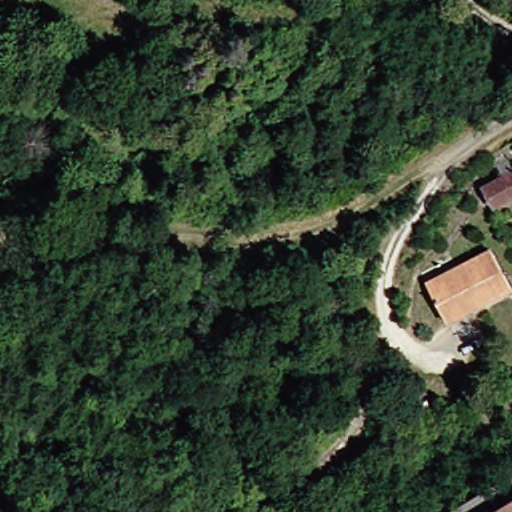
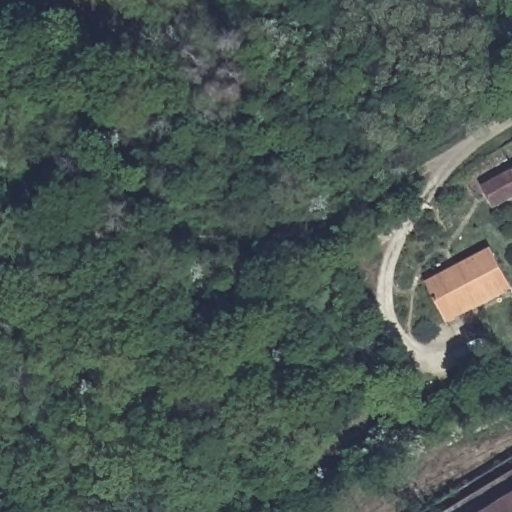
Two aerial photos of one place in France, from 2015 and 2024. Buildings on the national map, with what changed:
unchanged [(471,170),(497,152),(503,162),(477,179),(471,170)]
unchanged [(470,192),(512,167),(512,194),(481,212),(470,192)]
unchanged [(508,293),(437,318),(427,291),(422,277),(458,264),(492,252),(508,293)]
unchanged [(512,477),(512,512),(452,512),(512,477)]

